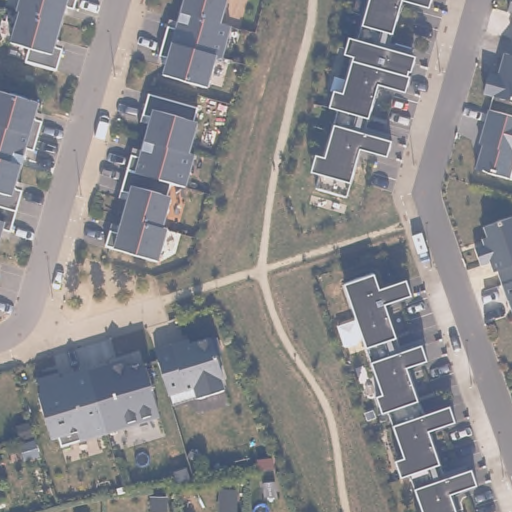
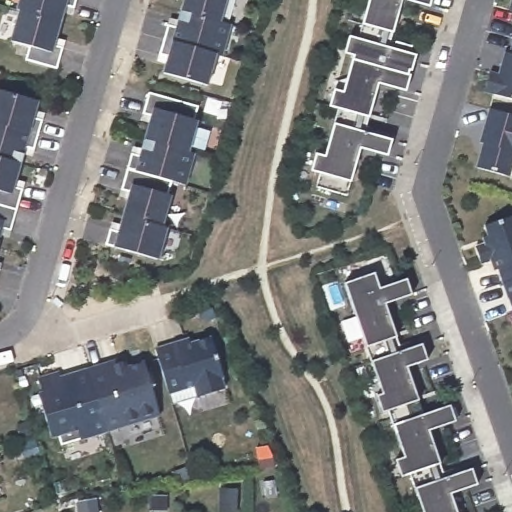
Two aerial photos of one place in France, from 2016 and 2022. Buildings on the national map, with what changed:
unchanged [(75,8),(67,6),(62,22),(40,16),(20,10),(17,9),(20,0),(77,0),(75,8)]
unchanged [(222,21),(193,13),(185,11),(183,10),(186,0),(228,0),(222,21)]
unchanged [(432,7),(403,1),(394,36),(391,35),(388,49),(417,58),(408,93),(380,85),(368,134),(391,143),(388,157),(359,152),(345,199),(318,191),(319,176),(310,173),(316,154),(324,157),(337,110),(328,109),(334,90),(344,92),(353,57),(344,54),(349,36),(357,40),(369,0),(433,0),(432,7)]
unchanged [(508,0),(512,0),(512,13),(505,12),(508,0)]
unchanged [(55,47),(63,49),(57,70),(26,61),(30,46),(11,41),(20,10),(40,16),(62,22),(55,47)]
unchanged [(185,11),(193,13),(222,21),(232,25),(223,56),(217,54),(167,39),(165,39),(169,24),(178,27),(183,10),(185,11)]
unchanged [(512,37),(512,40),(511,40),(512,37)]
unchanged [(167,39),(217,54),(208,85),(164,73),(169,56),(161,54),(165,39),(167,39)]
unchanged [(38,103),(33,119),(42,122),(38,136),(0,125),(0,92),(38,103)]
unchanged [(152,116),(143,113),(149,92),(198,106),(194,120),(197,121),(189,152),(167,145),(153,142),(145,139),(152,116)]
unchanged [(512,169),(509,178),(473,170),(486,109),(512,115),(512,169)]
unchanged [(38,136),(34,150),(25,148),(21,164),(0,158),(0,125),(38,136)]
unchanged [(153,142),(167,145),(189,152),(194,153),(188,174),(185,185),(171,181),(127,168),(129,162),(132,153),(140,156),(145,139),(153,142)]
unchanged [(21,164),(14,187),(23,189),(20,198),(17,211),(0,206),(0,158),(21,164)]
unchanged [(171,181),(167,195),(171,196),(163,224),(162,227),(151,224),(123,216),(123,214),(130,192),(121,189),(127,168),(171,181)]
unchanged [(17,211),(11,232),(2,229),(0,238),(0,206),(17,211)]
unchanged [(159,256),(157,260),(154,260),(105,245),(110,230),(118,232),(123,216),(151,224),(162,227),(167,228),(159,256)]
unchanged [(512,317),(488,262),(479,264),(472,247),(485,242),(481,228),(512,218),(512,317)]
unchanged [(400,480),(396,462),(405,459),(389,411),(382,414),(376,398),(382,397),(345,286),(376,274),(380,287),(408,280),(412,298),(386,306),(401,353),(424,345),(427,360),(405,368),(423,416),(449,407),(457,425),(429,434),(443,478),(472,469),(478,487),(453,496),(458,512),(422,512),(411,476),(400,480)]
unchanged [(167,391),(155,352),(189,341),(191,346),(212,340),(223,380),(221,380),(224,392),(197,400),(194,389),(169,396),(167,391)]
unchanged [(125,360),(127,370),(143,365),(159,418),(106,433),(88,371),(125,360)]
unchanged [(106,433),(60,447),(57,437),(51,439),(38,396),(42,394),(37,380),(58,374),(60,379),(88,371),(106,433)]

